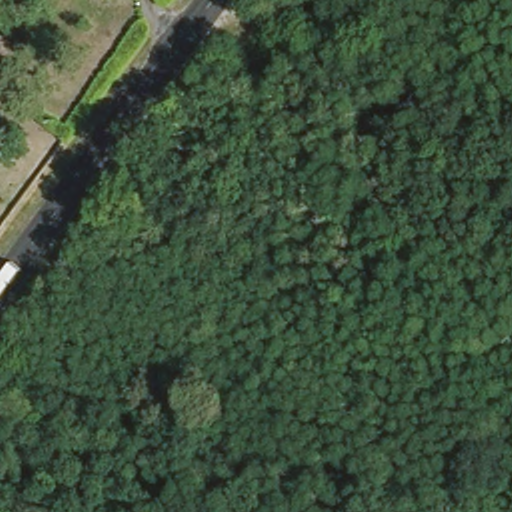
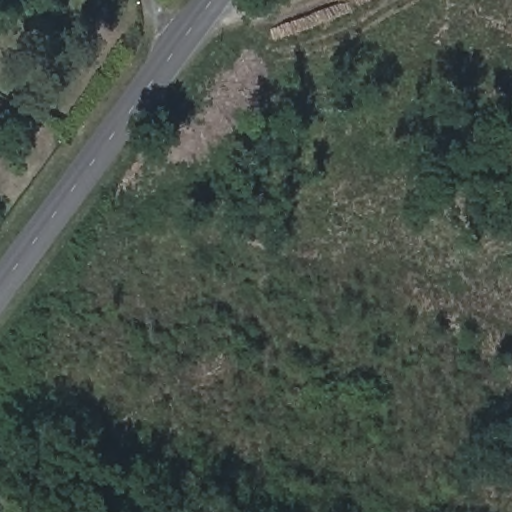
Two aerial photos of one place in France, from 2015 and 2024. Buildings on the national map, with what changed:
[]

